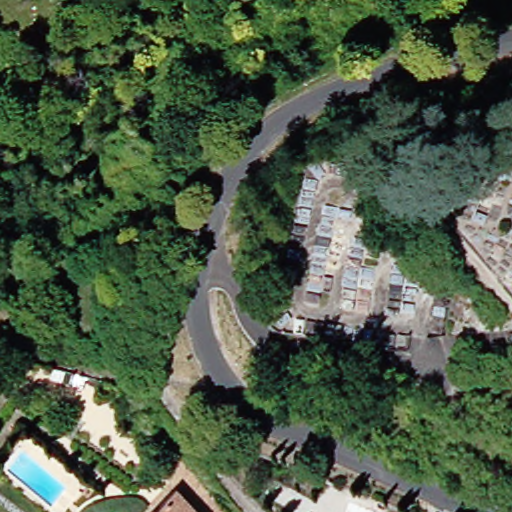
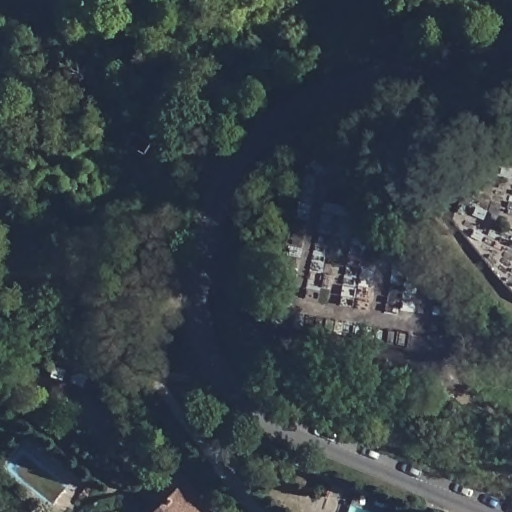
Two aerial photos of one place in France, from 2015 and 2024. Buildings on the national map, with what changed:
unchanged [(81,382),(54,372),(60,360),(85,368),(81,382)]
unchanged [(180,486),(206,512),(153,512),(171,495),(180,486)]

